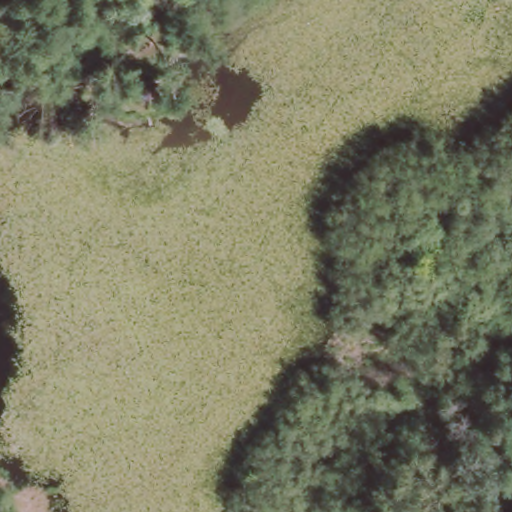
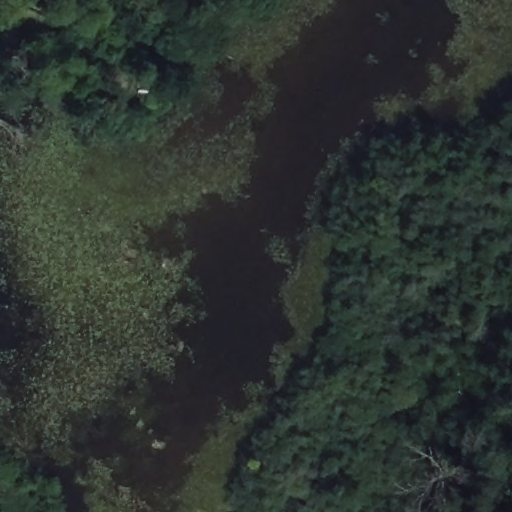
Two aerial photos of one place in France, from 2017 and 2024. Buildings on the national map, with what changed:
unchanged [(155,71),(155,79),(161,80),(160,89),(155,89),(155,98),(138,99),(138,70),(155,71)]

